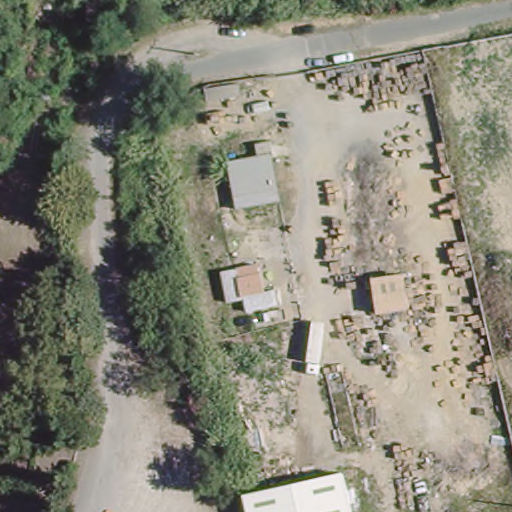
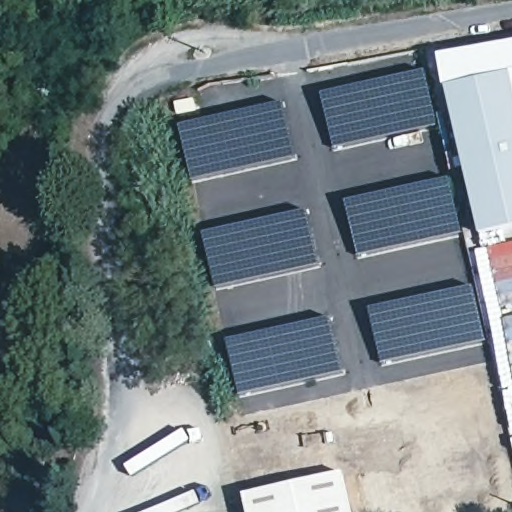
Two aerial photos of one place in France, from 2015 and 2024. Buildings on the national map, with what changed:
new [(481,234),(446,87),(440,56),(512,43),(512,227),(481,234)]
new [(335,148),(324,94),(426,72),(438,126),(335,148)]
new [(194,180),(182,126),(284,104),(297,158),(194,180)]
demolished [(227,155),(254,150),(252,137),(269,135),(280,196),(235,203),(227,155)]
new [(359,256),(347,202),(450,179),(462,233),(359,256)]
new [(217,287),(205,234),(307,212),(320,265),(217,287)]
new [(382,362),(371,310),(475,288),(485,341),(382,362)]
new [(240,394),(230,341),(332,318),(342,372),(240,394)]
unchanged [(0,461),(0,449),(11,447),(12,461),(0,461)]
demolished [(253,472),(297,462),(308,512),(262,512),(253,472)]
new [(344,471),(353,512),(248,512),(244,495),(344,471)]

